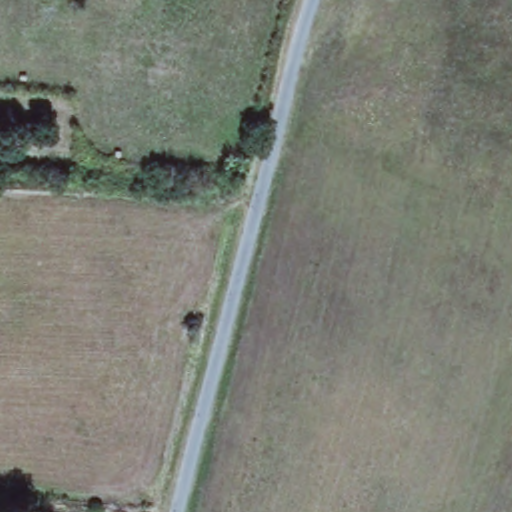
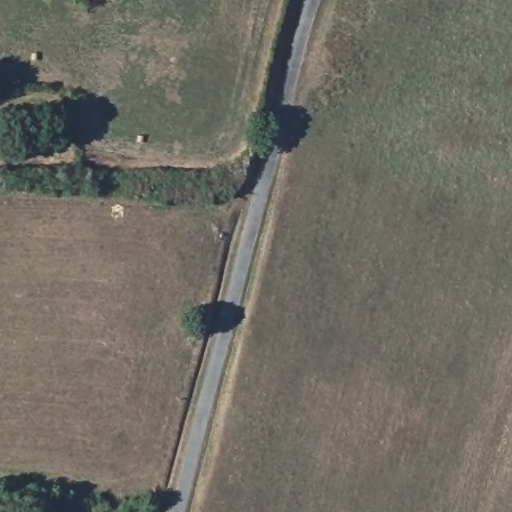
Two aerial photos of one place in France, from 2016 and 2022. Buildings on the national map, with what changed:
[]

